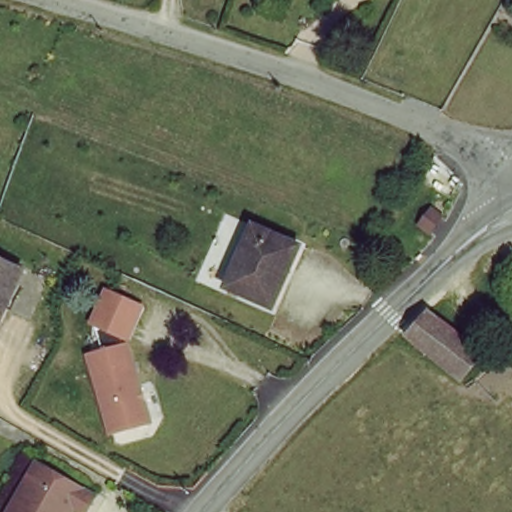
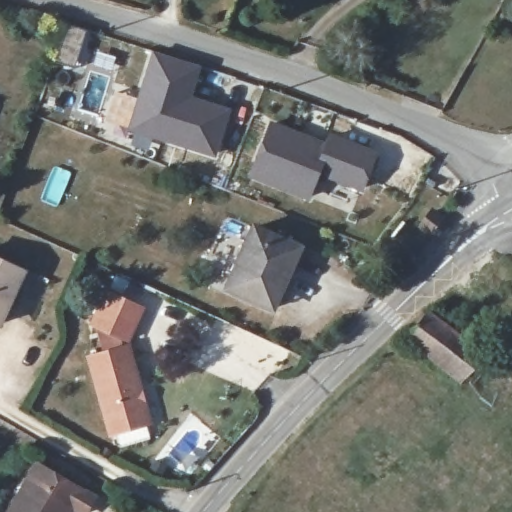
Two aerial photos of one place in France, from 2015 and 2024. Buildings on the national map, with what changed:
new [(214,157),(127,130),(152,51),(200,66),(191,94),(230,107),(214,157)]
new [(318,174),(308,201),(247,178),(270,119),(325,140),(328,132),(377,150),(363,192),(318,174)]
unchanged [(440,231),(430,247),(422,242),(432,226),(440,231)]
unchanged [(298,250),(272,309),(225,289),(252,230),(298,250)]
unchanged [(19,274),(0,319),(0,265),(19,274)]
unchanged [(152,419),(105,433),(82,352),(116,342),(116,334),(88,323),(105,287),(145,303),(130,337),(152,419)]
unchanged [(427,318),(481,357),(461,383),(406,341),(427,318)]
unchanged [(92,492),(81,509),(70,503),(65,512),(9,512),(28,481),(23,477),(35,458),(92,492)]

